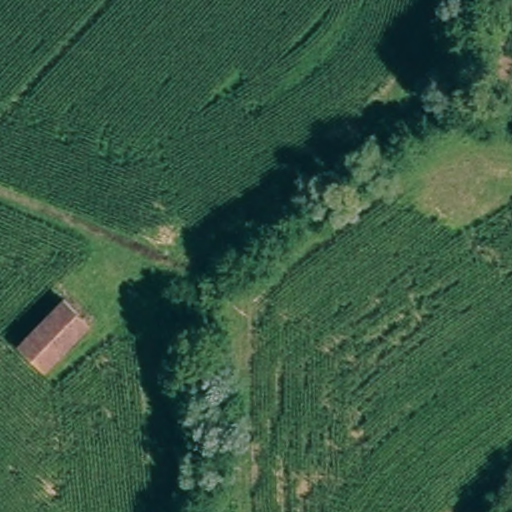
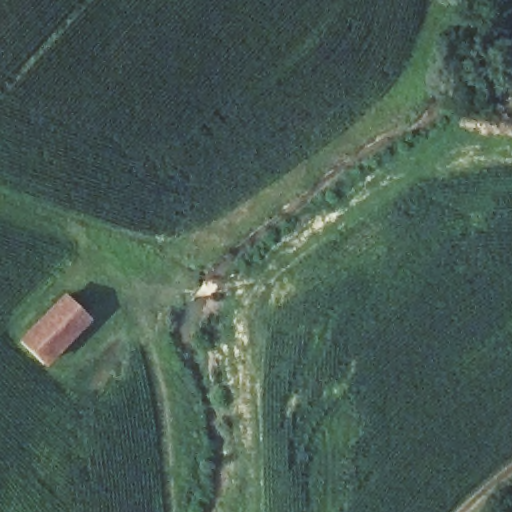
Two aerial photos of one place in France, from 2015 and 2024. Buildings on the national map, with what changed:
unchanged [(87,319),(44,364),(20,341),(65,296),(87,319)]

